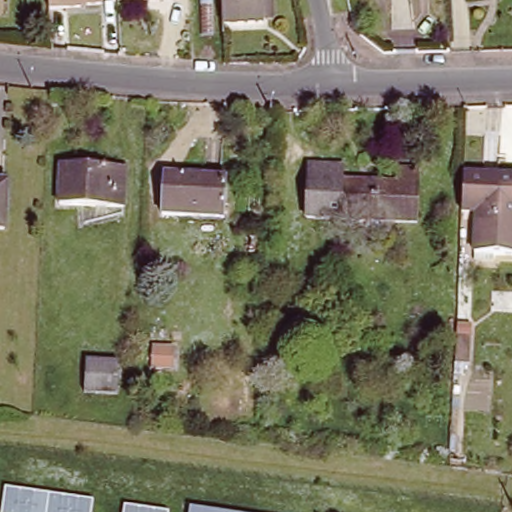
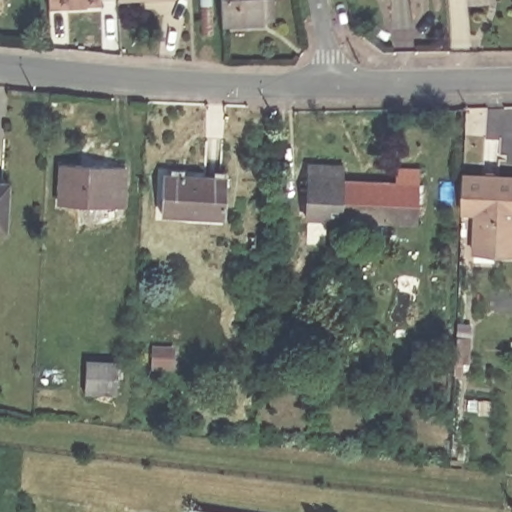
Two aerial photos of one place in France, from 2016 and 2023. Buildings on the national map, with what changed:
unchanged [(98,4),(46,5),(46,0),(98,0),(98,4)]
unchanged [(203,0),(214,0),(215,22),(204,23),(203,0)]
unchanged [(264,26),(227,27),(226,0),(263,0),(263,1),(276,1),(277,25),(264,26)]
unchanged [(64,204),(65,166),(127,169),(125,207),(64,204)]
unchanged [(311,220),(314,168),(349,170),(348,186),(400,189),(401,172),(423,173),(420,226),(311,220)]
unchanged [(512,253),(478,251),(482,210),(464,209),(466,172),(512,176),(512,253)]
unchanged [(227,179),(225,217),(162,214),(165,175),(227,179)]
unchanged [(0,228),(0,186),(12,187),(7,229),(0,228)]
unchanged [(122,362),(120,393),(88,392),(89,360),(122,362)]
demolished [(92,501),(90,512),(0,512),(0,507),(3,487),(92,501)]
demolished [(123,512),(123,507),(163,512),(123,512)]
unchanged [(205,512),(193,512),(193,511),(205,512)]

